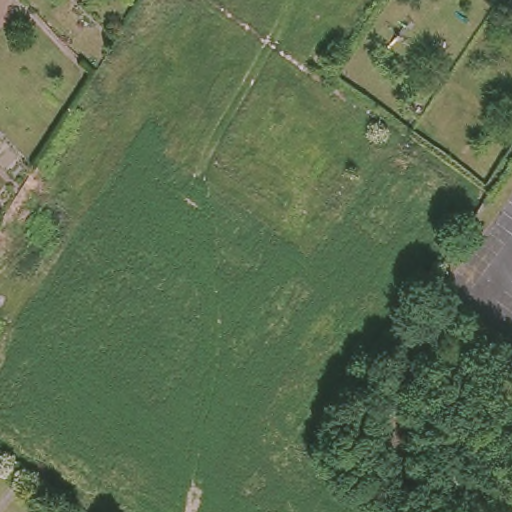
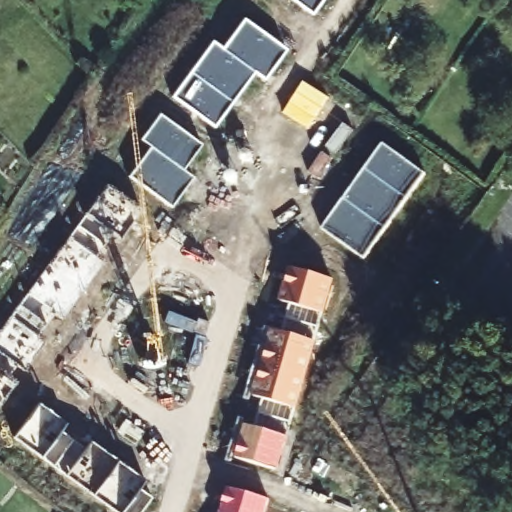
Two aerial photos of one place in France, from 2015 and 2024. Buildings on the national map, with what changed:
new [(292,0),(322,0),(312,15),(292,0)]
new [(172,97),(212,42),(222,49),(243,20),(285,50),(264,79),(254,72),(215,126),(172,97)]
new [(129,175),(150,146),(140,140),(159,114),(201,144),(182,170),(192,177),(171,205),(129,175)]
new [(322,229),(382,145),(424,175),(364,258),(322,229)]
new [(141,211),(120,240),(112,235),(95,257),(102,263),(62,318),(55,313),(38,335),(45,341),(24,370),(16,364),(7,376),(16,383),(0,406),(0,331),(106,185),(141,211)]
new [(234,458),(244,425),(255,427),(263,400),(251,395),(270,330),(282,332),(290,305),(280,301),(290,268),(335,281),(277,468),(234,458)]
new [(39,403),(66,424),(60,432),(85,449),(87,445),(90,441),(145,481),(140,489),(151,498),(141,512),(115,512),(13,437),(39,403)]
new [(269,500),(265,512),(220,512),(227,488),(269,500)]

